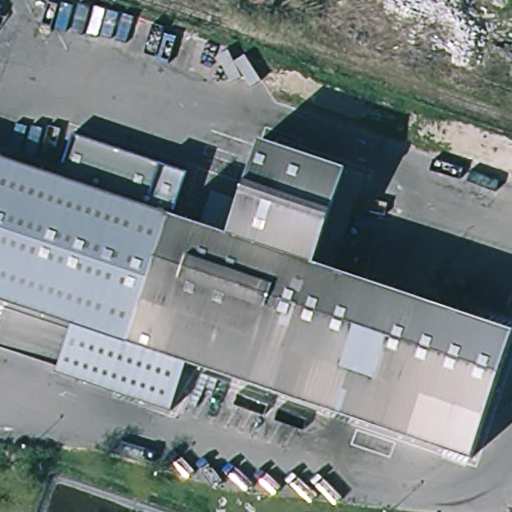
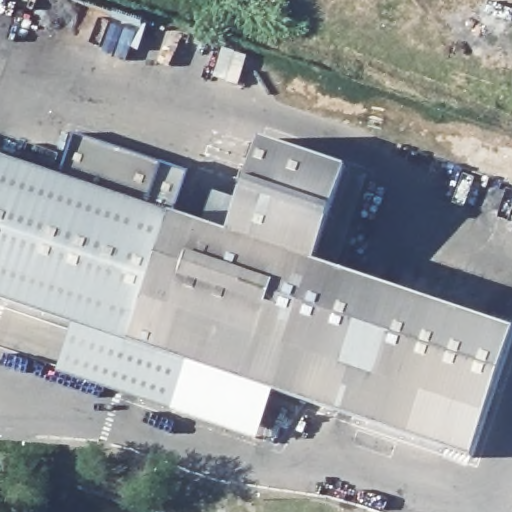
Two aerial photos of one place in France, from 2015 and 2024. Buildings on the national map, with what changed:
unchanged [(77,129),(189,170),(175,214),(203,223),(213,192),(243,201),(190,360),(79,321),(0,295),(0,153),(60,173),(77,129)]
unchanged [(243,201),(264,140),(349,168),(317,262),(512,328),(512,337),(474,455),(190,360),(243,201)]
unchanged [(173,409),(60,370),(79,321),(190,360),(173,409)]
new [(173,409),(190,360),(277,389),(258,439),(173,409)]

